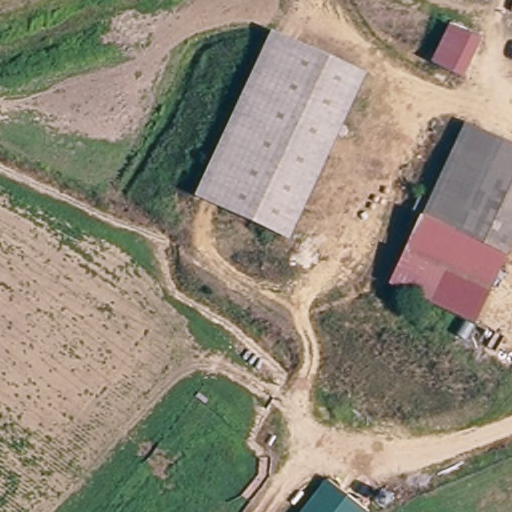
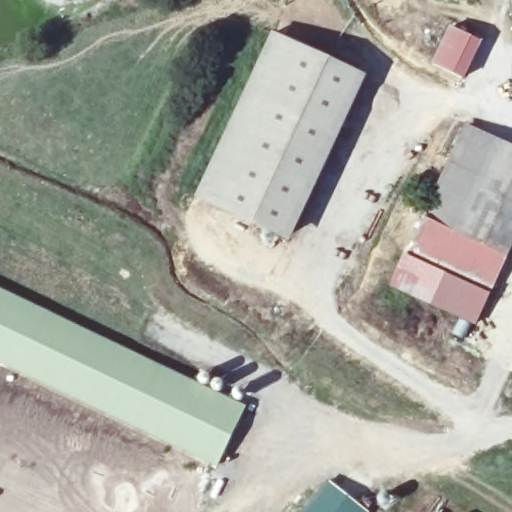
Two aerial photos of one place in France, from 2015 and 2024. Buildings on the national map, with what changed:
unchanged [(480,38),(463,76),(435,62),(444,23),(480,38)]
unchanged [(367,78),(291,246),(196,200),(272,34),(367,78)]
unchanged [(463,225),(508,248),(473,314),(392,272),(425,206),(458,138),(497,158),(463,225)]
unchanged [(512,240),(508,248),(463,225),(497,158),(512,166),(512,240)]
new [(245,405),(218,466),(0,363),(0,289),(245,405)]
unchanged [(361,512),(311,512),(333,487),(361,512)]

